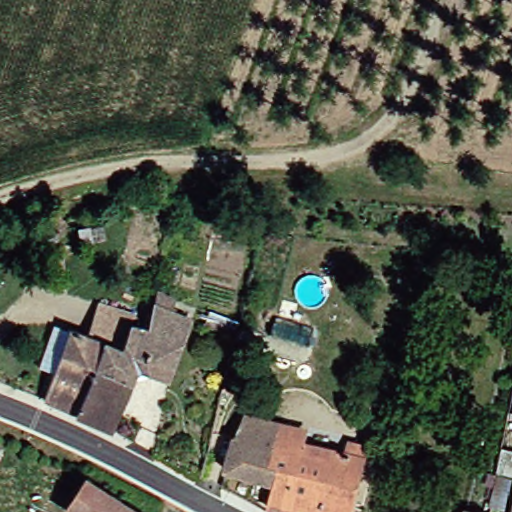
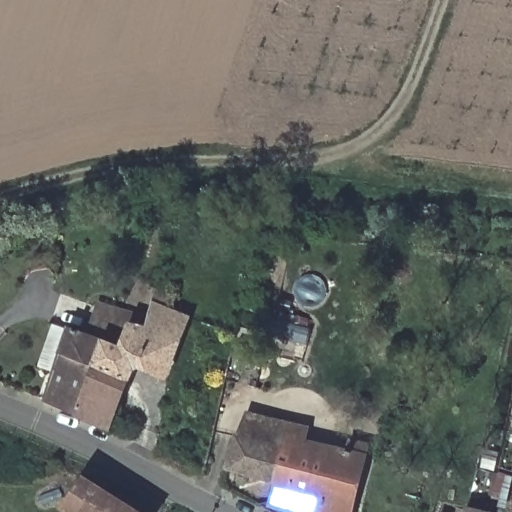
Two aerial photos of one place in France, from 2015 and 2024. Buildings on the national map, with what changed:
unchanged [(128,360),(122,363),(99,421),(66,410),(92,338),(111,344),(120,321),(135,322),(138,311),(142,300),(177,315),(173,325),(154,372),(128,360)]
unchanged [(90,303),(122,312),(120,321),(111,344),(92,338),(66,410),(35,398),(59,326),(80,334),(90,303)]
unchanged [(512,359),(512,380),(507,378),(512,359)]
unchanged [(239,436),(244,413),(303,431),(301,439),(343,449),(345,440),(362,443),(344,512),(297,512),(265,503),(270,481),(221,467),(230,434),(239,436)]
unchanged [(512,414),(512,416),(511,416),(512,414)]
unchanged [(507,476),(500,507),(486,504),(494,472),(507,476)]
unchanged [(67,512),(56,505),(75,474),(133,512),(67,512)]
unchanged [(512,512),(508,512),(512,498),(512,512)]
unchanged [(485,510),(487,511),(487,512),(460,512),(461,504),(485,510)]

